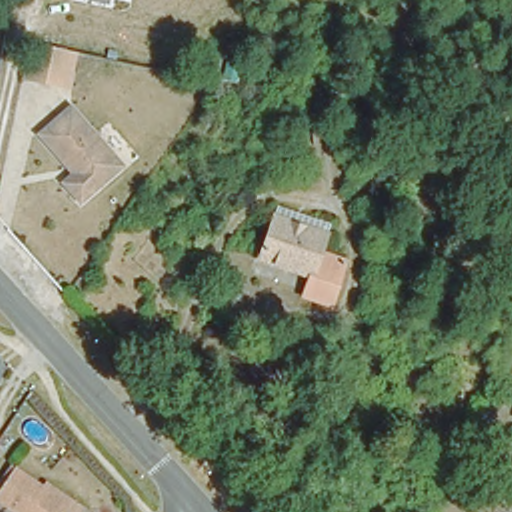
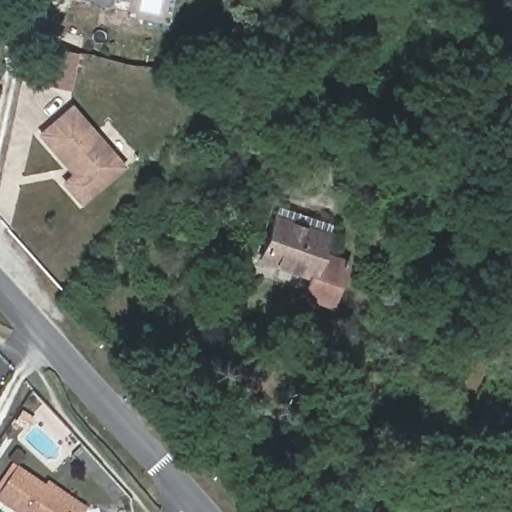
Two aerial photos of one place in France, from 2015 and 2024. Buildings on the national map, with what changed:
unchanged [(111,6),(82,0),(113,0),(111,6)]
unchanged [(26,48),(46,44),(73,49),(65,84),(20,74),(26,48)]
unchanged [(41,130),(73,107),(119,168),(76,201),(61,181),(73,172),(68,166),(41,130)]
unchanged [(342,266),(326,310),(299,300),(306,282),(258,265),(273,221),(277,211),(326,229),(322,238),(316,257),(342,266)]
unchanged [(501,437),(479,426),(489,408),(510,420),(501,437)]
unchanged [(21,512),(0,499),(0,490),(15,467),(74,503),(81,508),(79,512),(21,512)]

